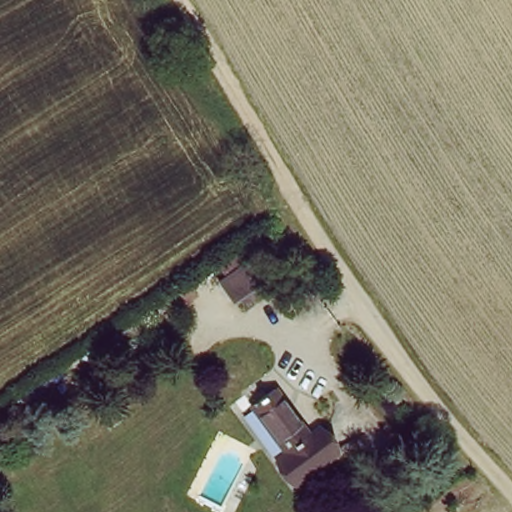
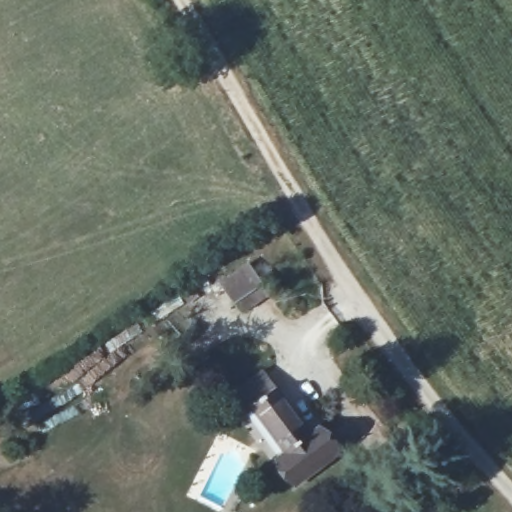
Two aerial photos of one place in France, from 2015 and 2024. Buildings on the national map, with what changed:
unchanged [(263,280),(236,299),(223,280),(251,261),(263,280)]
unchanged [(274,386),(310,435),(288,450),(254,400),(274,386)]

